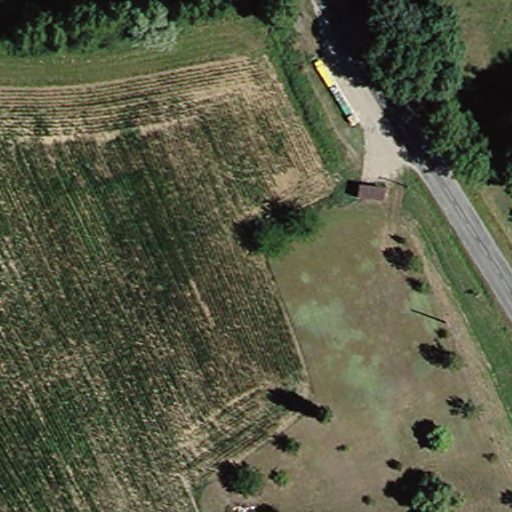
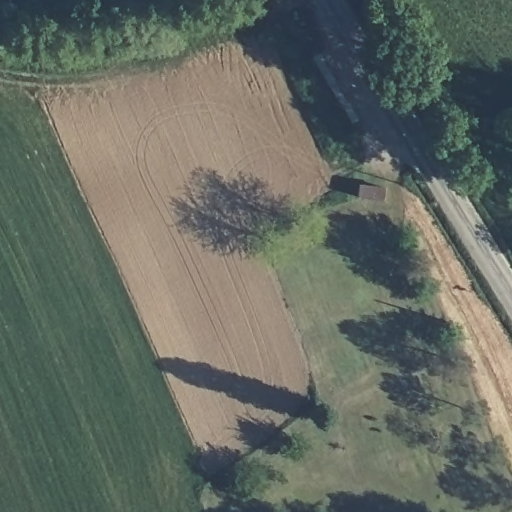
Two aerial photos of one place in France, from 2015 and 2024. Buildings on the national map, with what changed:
unchanged [(345,202),(372,205),(370,220),(346,219),(345,202)]

